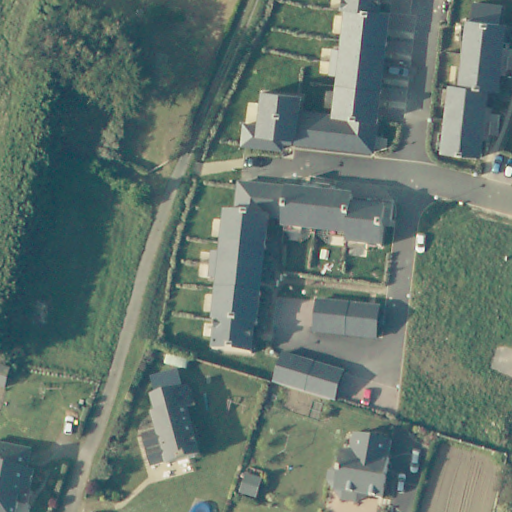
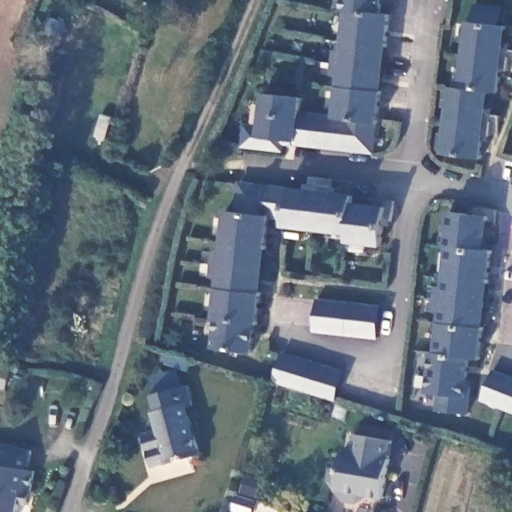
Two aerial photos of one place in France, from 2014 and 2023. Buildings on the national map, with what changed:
unchanged [(379,12),(389,13),(373,154),(284,145),(284,153),(242,148),(243,124),(257,125),(261,94),(302,99),(300,113),(333,116),(338,78),(329,76),(332,51),(340,52),(344,12),(341,12),(342,0),(380,0),(379,12)]
unchanged [(472,22),(474,4),(502,6),(499,25),(505,26),(498,93),(489,92),(481,157),(443,153),(449,86),(459,87),(465,21),(472,22)]
unchanged [(286,188),(309,190),(309,179),(334,181),(331,191),(352,194),(351,203),(384,206),(379,246),(346,243),(346,234),(282,228),(283,220),(268,219),(253,354),(210,348),(225,210),(235,212),(235,211),(239,181),(286,188)]
new [(485,250),(493,251),(480,360),(471,358),(468,379),(471,380),(468,413),(434,411),(434,394),(423,393),(427,352),(434,352),(446,213),(488,216),(485,250)]
unchanged [(381,306),(378,339),(315,332),(319,299),(381,306)]
unchanged [(344,372),(334,400),(273,381),(282,353),(344,372)]
new [(492,369),(512,377),(512,413),(479,400),(492,369)]
unchanged [(145,439),(160,435),(154,414),(158,413),(154,397),(186,389),(193,409),(189,410),(203,458),(170,467),(169,464),(153,469),(145,439)]
unchanged [(389,461),(390,462),(383,500),(367,498),(358,505),(344,503),(329,483),(331,474),(341,467),(344,453),(353,455),(356,437),(393,443),(389,461)]
unchanged [(39,472),(34,488),(24,487),(18,512),(0,512),(0,443),(36,451),(31,470),(39,472)]

